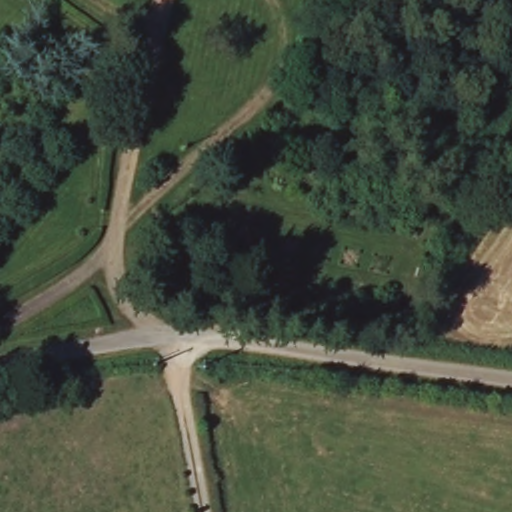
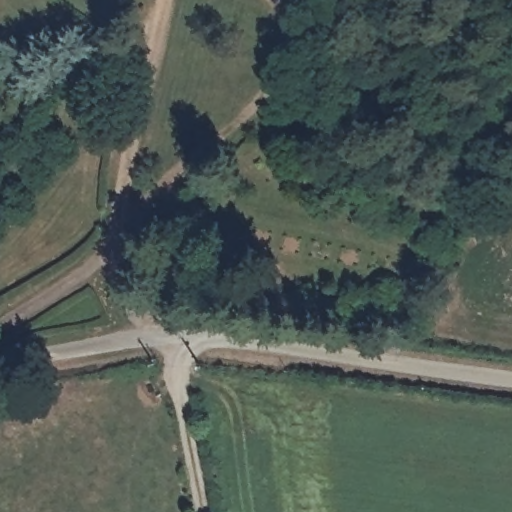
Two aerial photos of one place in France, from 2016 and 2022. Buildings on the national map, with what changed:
unchanged [(355,69),(371,74),(368,82),(355,118),(303,102),(335,0),(375,0),(355,69)]
unchanged [(279,131),(327,147),(331,133),(349,138),(338,170),(274,151),(277,141),(279,131)]

